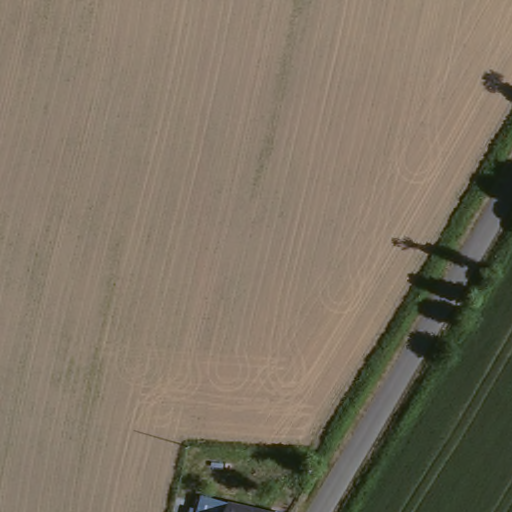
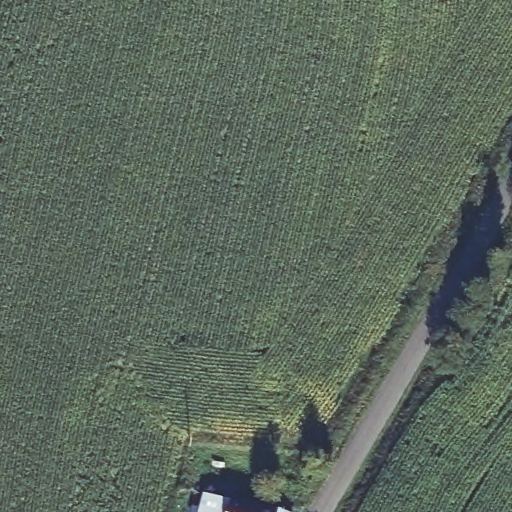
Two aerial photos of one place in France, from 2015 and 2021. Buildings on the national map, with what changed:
unchanged [(205,488),(237,497),(234,512),(200,512),(205,488)]
unchanged [(237,497),(296,512),(234,512),(237,497)]

